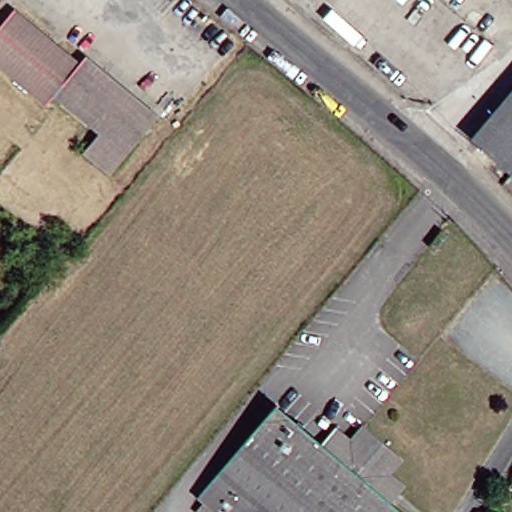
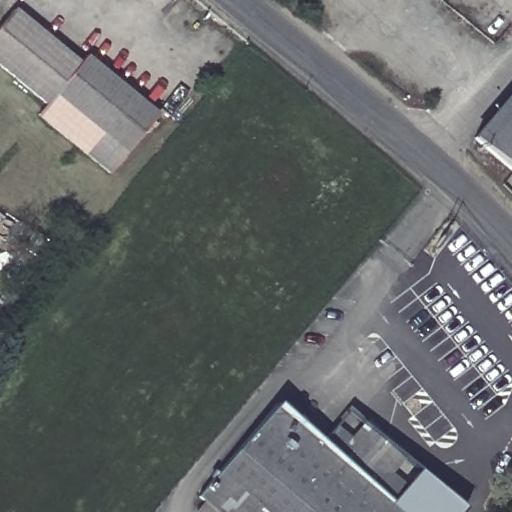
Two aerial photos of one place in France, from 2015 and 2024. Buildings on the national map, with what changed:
unchanged [(50,102),(0,61),(0,30),(19,7),(84,62),(54,98),(50,102)]
unchanged [(100,137),(54,98),(84,62),(86,60),(156,119),(124,157),(109,176),(85,155),(100,137)]
unchanged [(463,138),(512,81),(512,180),(463,138)]
unchanged [(383,473),(398,487),(383,506),(391,512),(259,512),(252,507),(248,512),(191,512),(199,502),(192,497),(268,408),(314,447),(331,428),(346,442),(358,427),(397,458),(383,473)]
new [(391,512),(383,506),(397,489),(401,492),(419,471),(463,508),(460,512),(391,512)]

